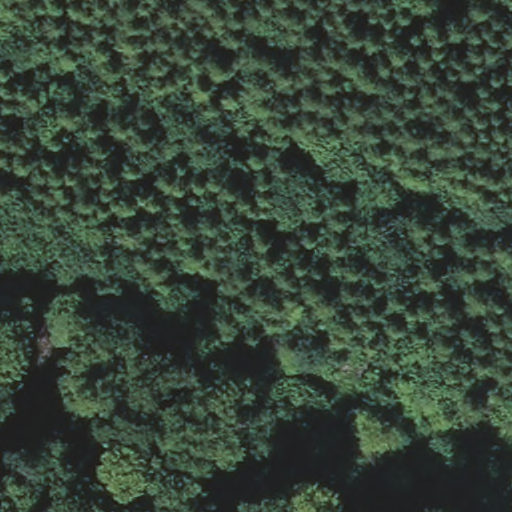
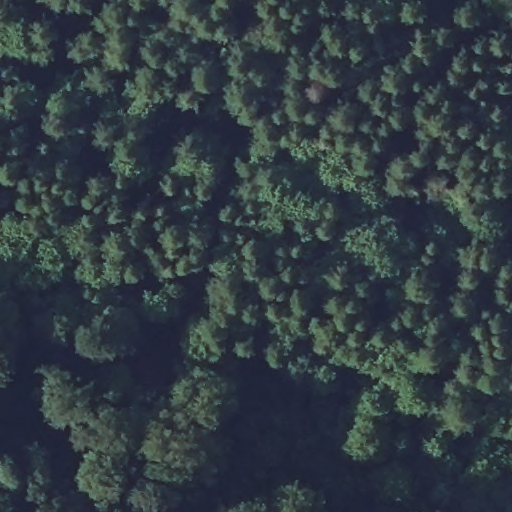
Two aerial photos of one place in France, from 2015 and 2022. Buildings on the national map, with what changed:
[]

